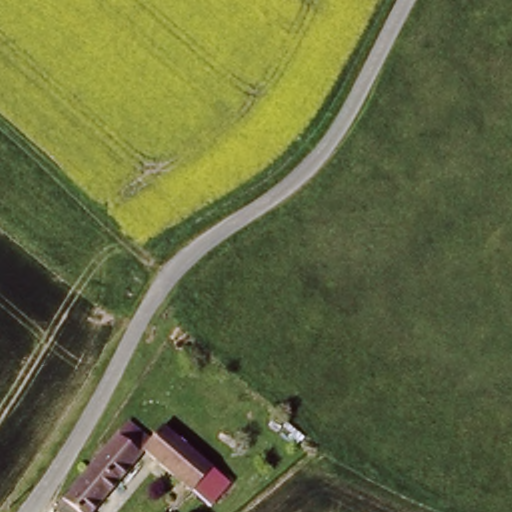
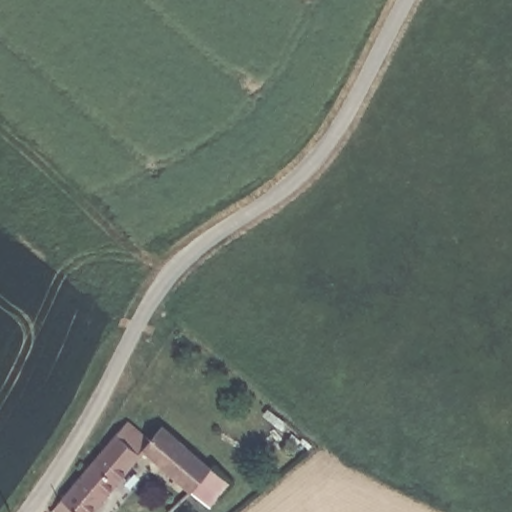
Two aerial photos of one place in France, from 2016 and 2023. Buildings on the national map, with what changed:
unchanged [(192,488),(145,448),(152,440),(166,422),(214,462),(192,488)]
unchanged [(90,512),(66,512),(59,505),(122,428),(128,434),(135,426),(152,440),(145,448),(90,512)]

